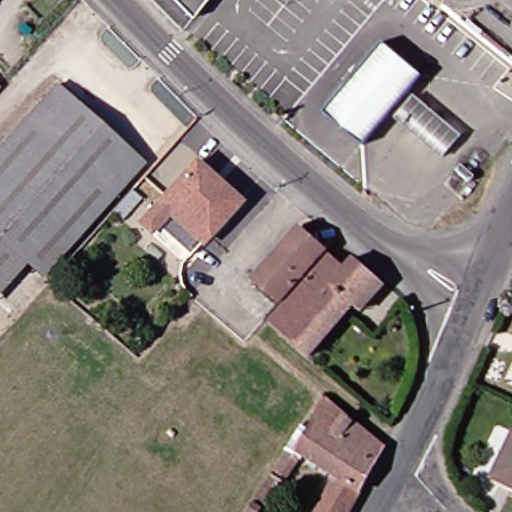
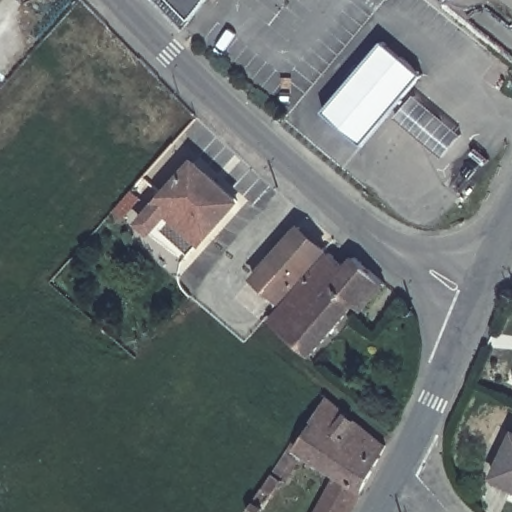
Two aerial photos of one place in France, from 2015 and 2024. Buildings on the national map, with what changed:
unchanged [(179,0),(202,0),(191,14),(179,0)]
unchanged [(449,0),(453,0),(451,2),(449,0)]
unchanged [(428,70),(367,140),(330,108),(388,36),(428,70)]
demolished [(149,159),(47,275),(30,260),(0,233),(0,157),(62,84),(149,159)]
unchanged [(421,91),(466,130),(450,149),(404,111),(421,91)]
unchanged [(250,190),(214,231),(200,246),(185,232),(180,239),(151,214),(206,151),(206,152),(250,190)]
unchanged [(331,257),(288,309),(263,287),(305,235),(331,257)]
unchanged [(371,320),(363,315),(322,363),(285,330),(338,263),(354,276),(365,264),(395,290),(371,320)]
unchanged [(318,413),(331,395),(389,439),(369,480),(372,482),(356,512),(321,512),(339,475),(291,441),(312,408),(318,413)]
demolished [(135,435),(145,444),(139,451),(129,443),(135,435)]
unchanged [(495,481),(512,444),(512,490),(495,481)]
unchanged [(293,451),(280,472),(285,476),(263,512),(252,512),(247,509),(287,447),(293,451)]

